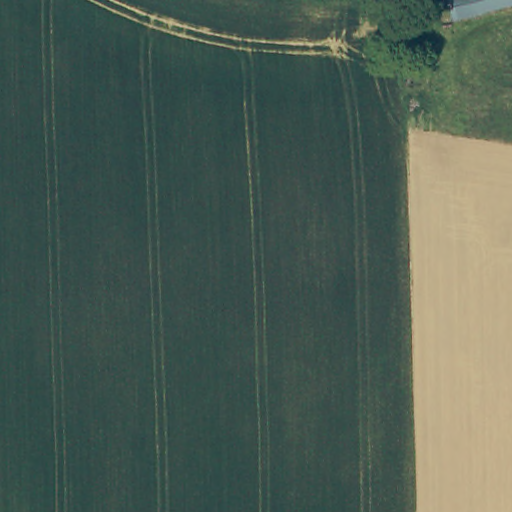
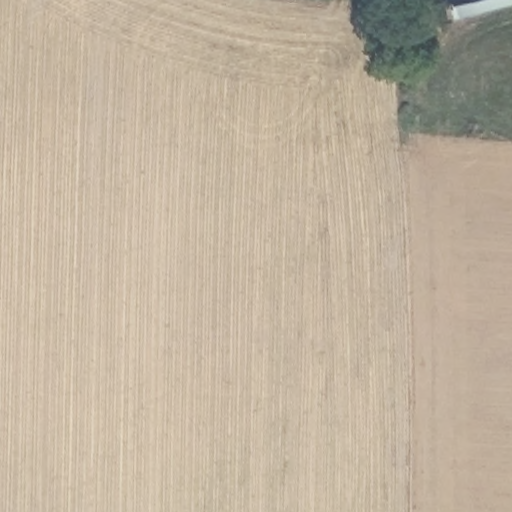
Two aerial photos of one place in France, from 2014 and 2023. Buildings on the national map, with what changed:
unchanged [(433,18),(429,12),(429,5),(434,0),(445,0),(448,1),(448,0),(512,0),(512,2),(453,20),(451,13),(446,19),(439,21),(433,18)]

